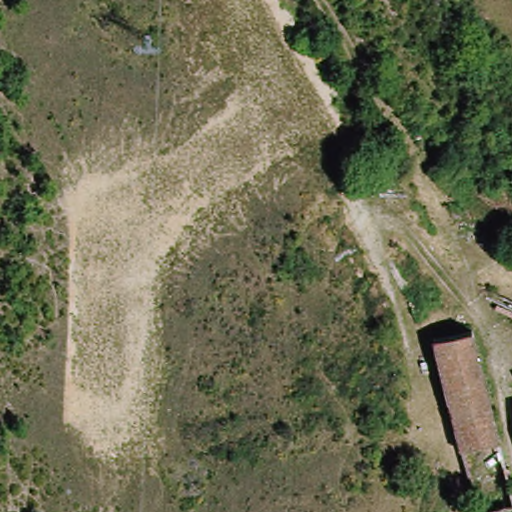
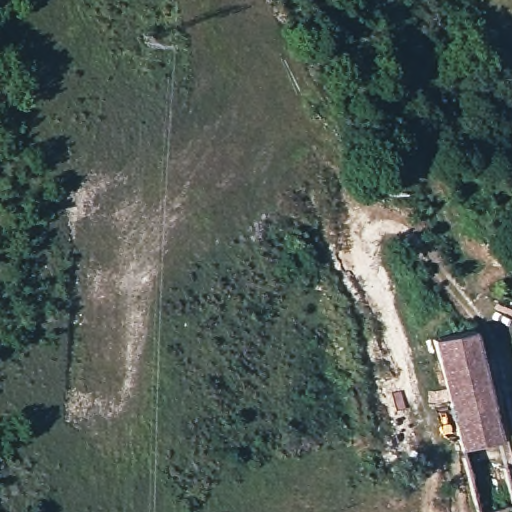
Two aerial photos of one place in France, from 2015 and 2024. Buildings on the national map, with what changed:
unchanged [(474,336),(500,441),(462,451),(435,346),(474,336)]
unchanged [(477,512),(462,451),(500,441),(512,490),(512,508),(496,512),(477,512)]

